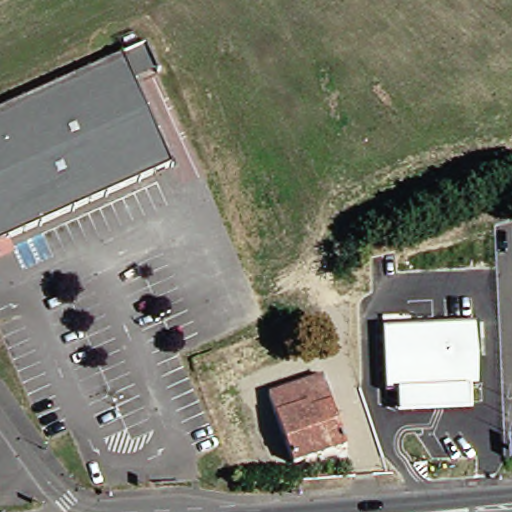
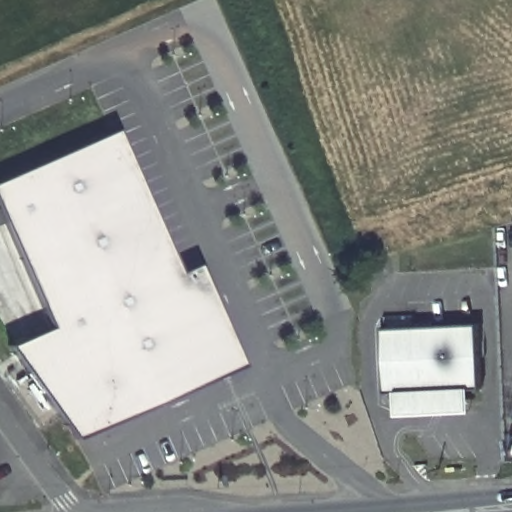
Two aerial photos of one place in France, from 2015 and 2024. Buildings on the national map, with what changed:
demolished [(159,55),(135,65),(141,78),(179,163),(0,243),(0,106),(151,38),(159,55)]
new [(172,268),(193,258),(219,317),(111,366),(129,406),(73,432),(6,338),(25,330),(31,343),(54,333),(0,214),(0,174),(107,125),(172,268)]
new [(111,366),(217,318),(236,358),(129,406),(111,366)]
new [(483,390),(474,390),(475,415),(399,418),(397,392),(386,392),(384,330),(479,325),(483,390)]
demolished [(274,390),(325,373),(349,445),(298,463),(274,390)]

